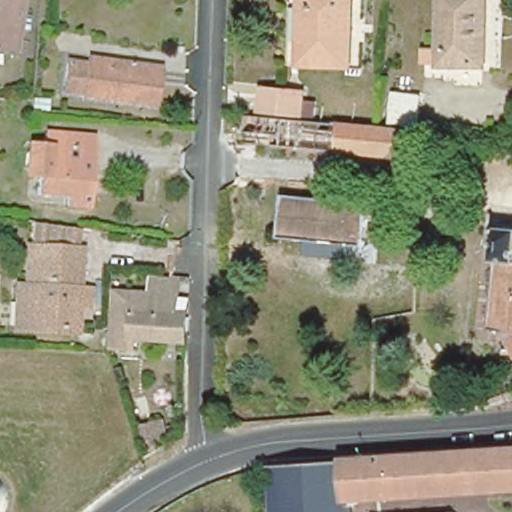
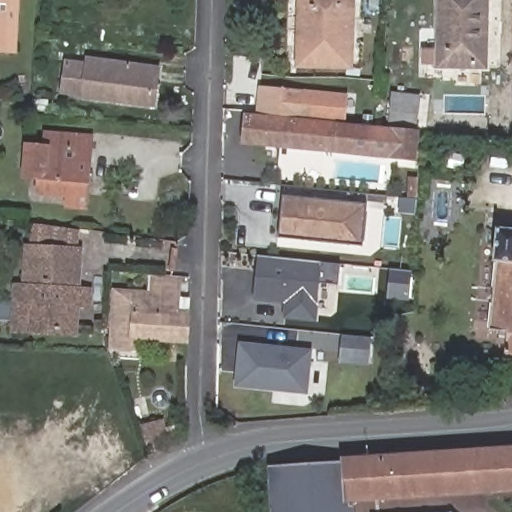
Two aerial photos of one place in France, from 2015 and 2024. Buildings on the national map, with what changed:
unchanged [(0,46),(0,0),(14,0),(10,47),(0,46)]
unchanged [(309,59),(311,0),(361,0),(359,59),(309,59)]
unchanged [(438,64),(441,0),(484,0),(484,65),(438,64)]
unchanged [(89,64),(89,59),(157,69),(152,104),(63,91),(67,61),(89,64)]
demolished [(263,108),(265,82),(308,87),(306,112),(263,108)]
unchanged [(393,121),(397,86),(425,90),(421,124),(393,121)]
unchanged [(250,125),(252,109),(420,128),(418,153),(275,140),(249,137),(250,125)]
unchanged [(32,172),(27,166),(28,147),(34,143),(40,144),(49,145),(59,146),(61,131),(91,135),(86,206),(66,205),(67,195),(37,193),(38,172),(32,172)]
unchanged [(362,194),(357,235),(274,226),(279,185),(362,194)]
unchanged [(512,352),(505,351),(507,331),(490,328),(497,260),(494,259),(497,226),(512,228),(512,352)]
unchanged [(22,296),(23,279),(35,280),(37,241),(82,244),(80,282),(98,283),(97,300),(79,300),(78,325),(33,323),(20,323),(22,296)]
new [(317,306),(253,300),(258,256),(321,262),(317,306)]
unchanged [(132,335),(131,347),(109,345),(111,294),(175,298),(174,315),(187,316),(186,339),(132,335)]
new [(308,394),(235,387),(239,343),(312,349),(308,394)]
unchanged [(352,512),(265,512),(262,465),(341,460),(341,454),(512,444),(512,488),(351,499),(352,512)]
unchanged [(366,511),(438,504),(450,512),(366,512),(366,511)]

